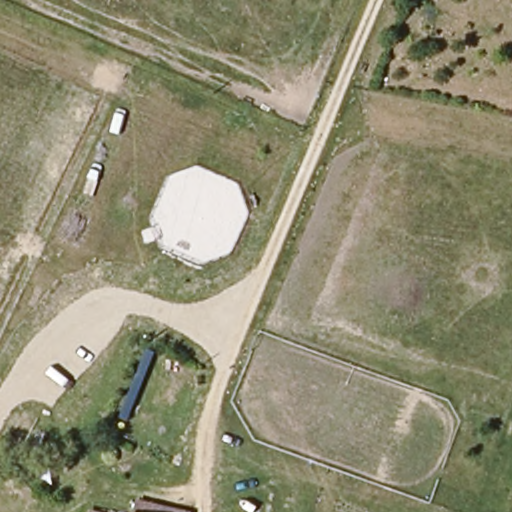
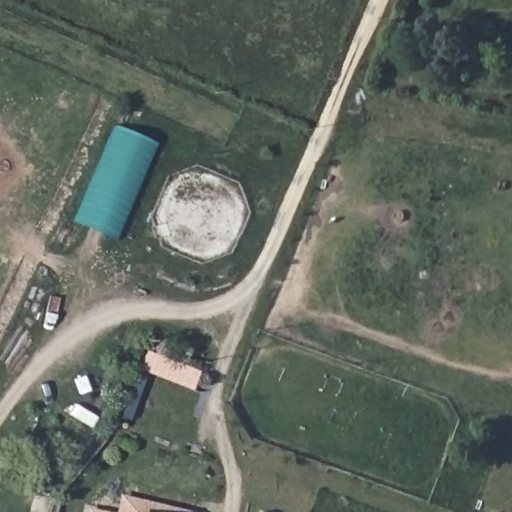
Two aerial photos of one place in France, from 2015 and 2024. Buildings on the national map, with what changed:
new [(117,241),(77,223),(117,126),(157,145),(117,241)]
unchanged [(146,512),(143,512),(144,511),(146,512)]

